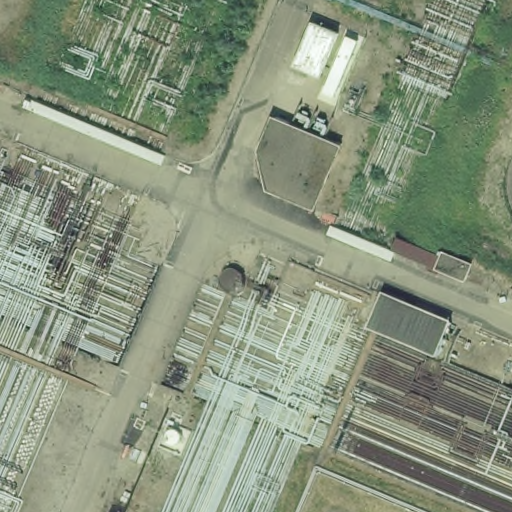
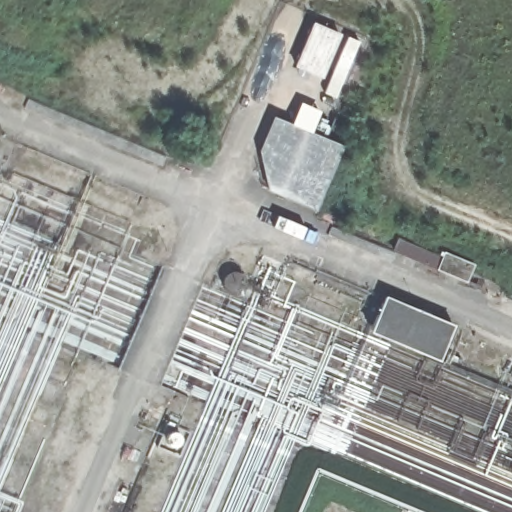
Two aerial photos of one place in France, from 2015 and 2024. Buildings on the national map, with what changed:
unchanged [(322,75),(294,64),(313,20),(340,29),(322,75)]
unchanged [(337,144),(315,212),(267,186),(259,153),(276,120),(337,144)]
unchanged [(475,259),(469,280),(434,267),(440,248),(475,259)]
unchanged [(449,325),(440,363),(372,334),(384,296),(449,325)]

